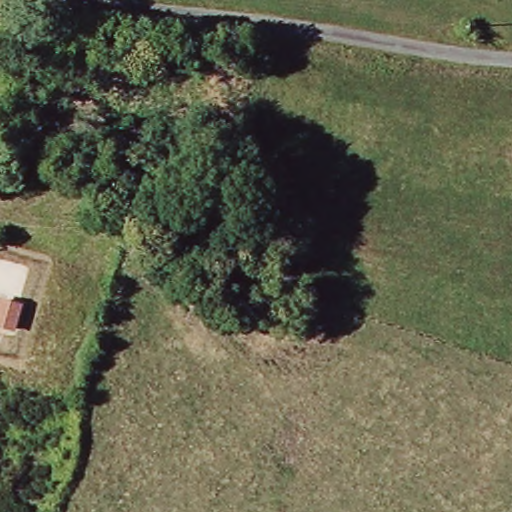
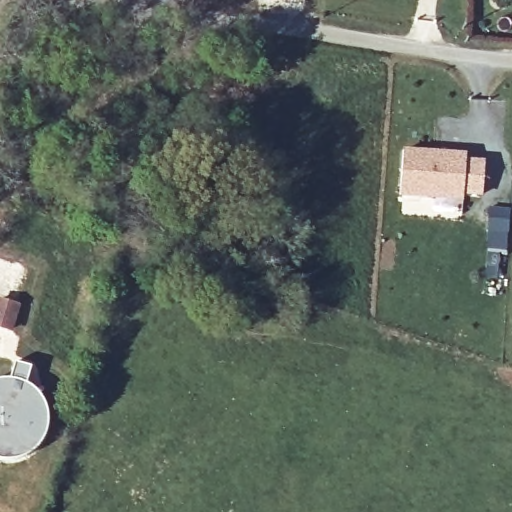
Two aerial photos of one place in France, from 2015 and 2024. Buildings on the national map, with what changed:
new [(405,152),(467,156),(467,162),(486,164),(483,195),(465,194),(464,200),(402,195),(405,152)]
new [(491,210),(510,211),(508,232),(507,251),(487,249),(489,231),(491,210)]
unchanged [(0,298),(22,303),(15,333),(0,330),(0,298)]
new [(14,360),(33,365),(28,382),(41,391),(48,406),(50,420),(46,437),(38,449),(25,458),(10,461),(0,460),(0,378),(10,377),(14,360)]

